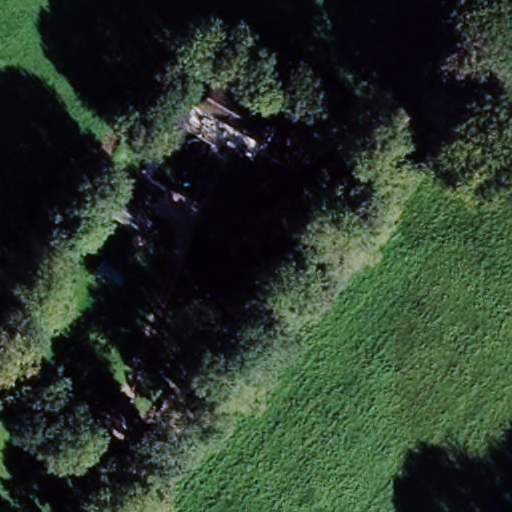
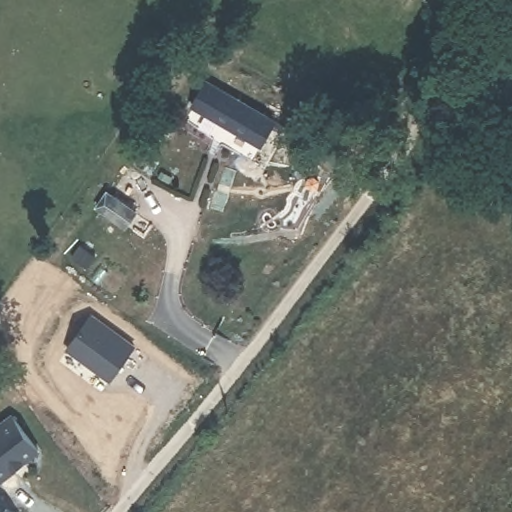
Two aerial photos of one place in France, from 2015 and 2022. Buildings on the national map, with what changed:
unchanged [(199,95),(214,72),(277,118),(262,141),(199,95)]
unchanged [(136,208),(119,233),(96,216),(114,191),(136,208)]
new [(137,346),(112,383),(67,351),(90,314),(137,346)]
new [(0,483),(0,421),(11,413),(44,448),(0,483)]

